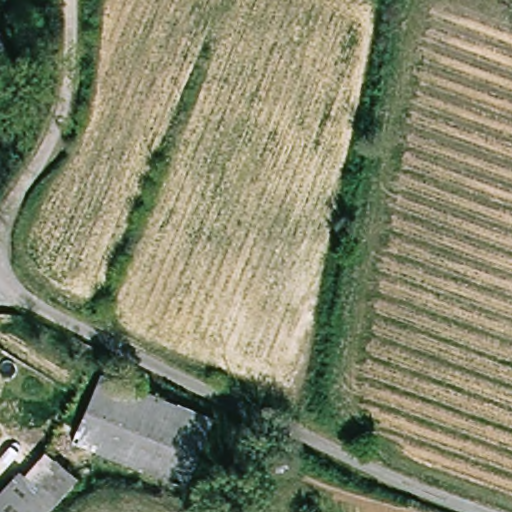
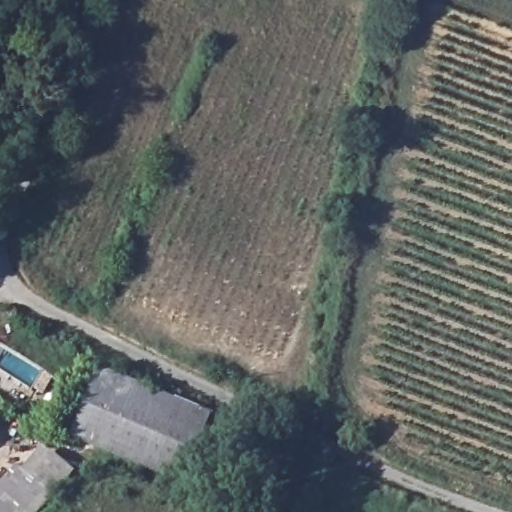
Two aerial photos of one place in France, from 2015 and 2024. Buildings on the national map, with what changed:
unchanged [(96,376),(208,410),(192,477),(78,445),(96,376)]
unchanged [(0,495),(29,467),(40,477),(55,456),(78,475),(46,512),(0,512),(0,495)]

